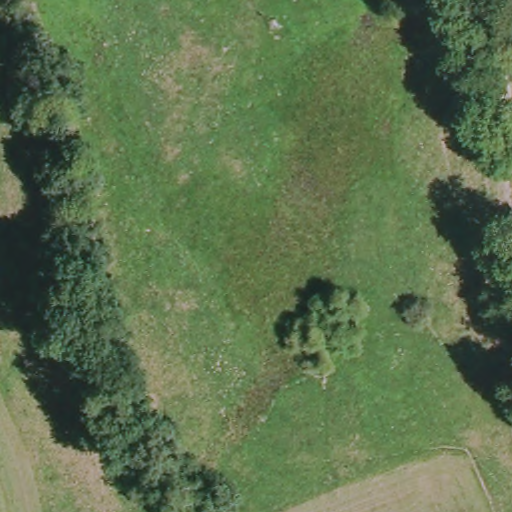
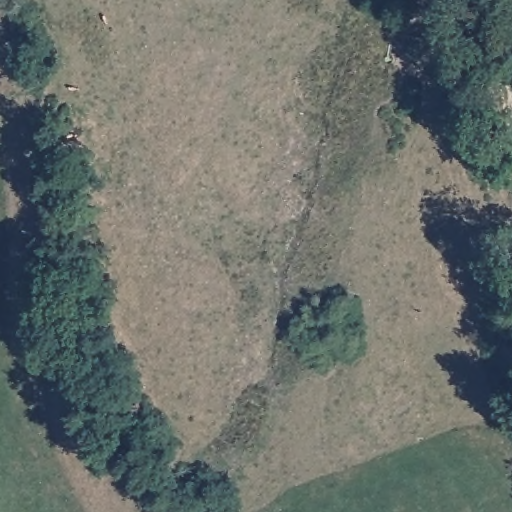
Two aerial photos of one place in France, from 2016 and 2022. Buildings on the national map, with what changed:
[]

